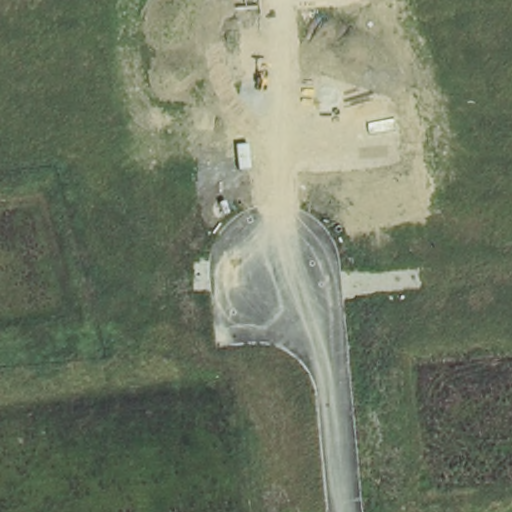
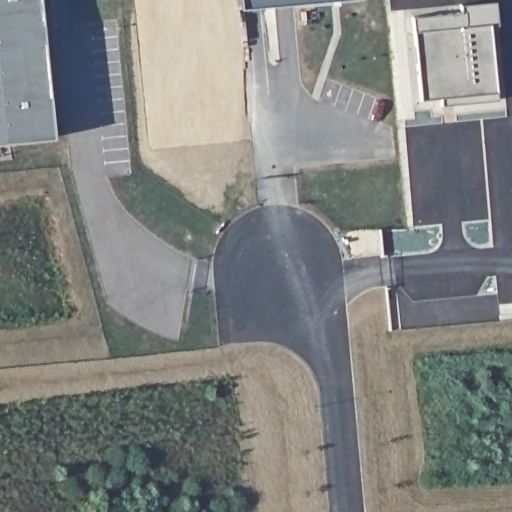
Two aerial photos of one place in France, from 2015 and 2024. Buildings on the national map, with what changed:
new [(0,142),(0,0),(38,0),(51,138),(0,142)]
unchanged [(244,12),(242,0),(365,0),(365,1),(244,12)]
new [(489,25),(494,90),(496,99),(441,104),(440,96),(420,97),(413,31),(412,18),(460,14),(460,5),(494,3),(496,24),(489,25)]

